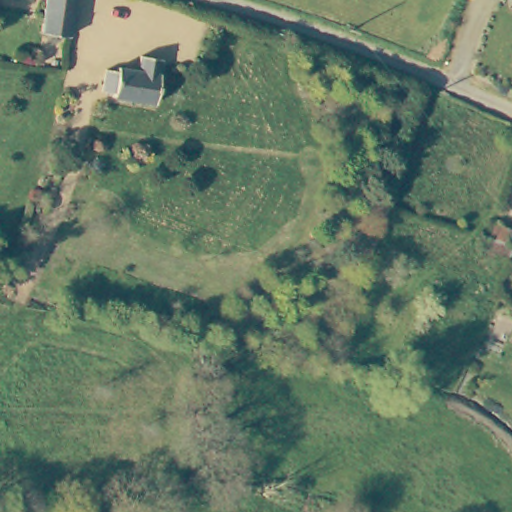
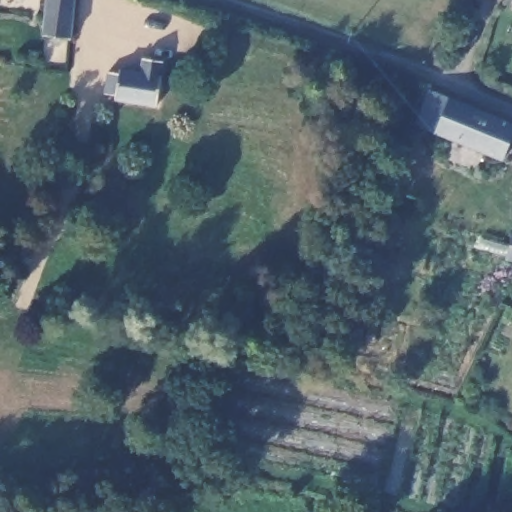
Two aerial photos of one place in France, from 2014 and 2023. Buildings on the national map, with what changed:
unchanged [(40,36),(41,22),(44,0),(72,0),(68,39),(40,36)]
unchanged [(162,64),(156,109),(115,104),(115,98),(102,97),(105,77),(118,78),(120,74),(141,78),(142,61),(162,64)]
new [(502,160),(433,131),(416,125),(430,89),(449,95),(512,121),(512,137),(502,160)]
unchanged [(493,239),(498,228),(503,230),(512,234),(512,246),(493,239)]

